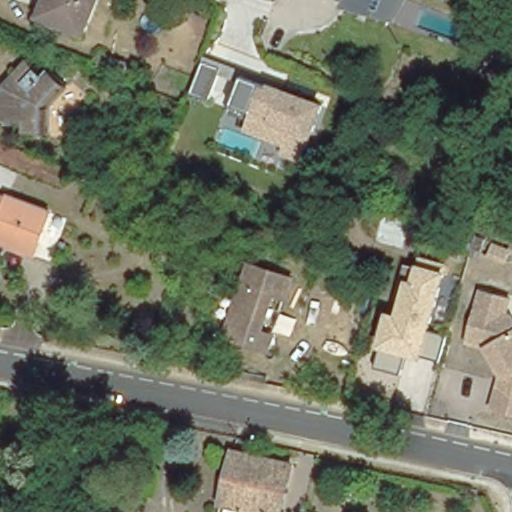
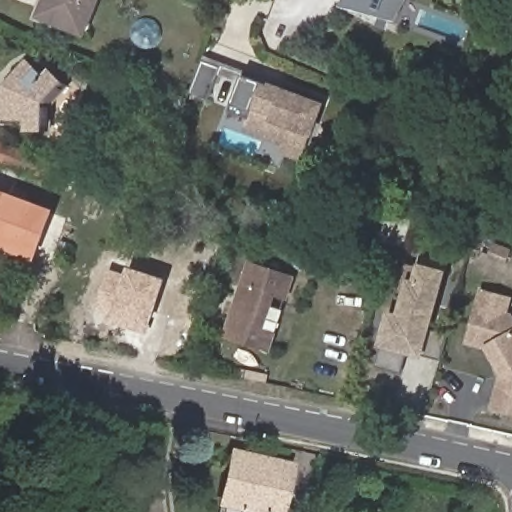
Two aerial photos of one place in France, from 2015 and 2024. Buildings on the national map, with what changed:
unchanged [(83,36),(38,17),(44,0),(97,0),(83,36)]
unchanged [(396,22),(349,10),(352,0),(407,0),(396,22)]
unchanged [(270,89),(272,83),(326,102),(313,137),(302,161),(281,156),(285,145),(244,130),(249,119),(228,112),(232,104),(210,96),(208,101),(190,95),(204,55),(243,70),(244,79),(270,89)]
unchanged [(24,76),(31,70),(49,84),(52,80),(70,95),(52,140),(31,140),(31,132),(7,131),(8,120),(0,119),(0,69),(6,62),(24,76)]
unchanged [(68,170),(62,184),(0,160),(0,144),(68,170)]
unchanged [(5,200),(6,197),(51,215),(43,240),(38,239),(30,259),(0,247),(0,199),(5,200)]
unchanged [(212,263),(198,257),(206,234),(221,239),(212,263)]
unchanged [(432,331),(448,336),(442,359),(426,355),(425,360),(407,355),(402,375),(378,368),(384,349),(378,347),(387,311),(399,313),(402,300),(396,299),(405,267),(417,270),(419,264),(421,256),(447,263),(448,272),(432,331)]
unchanged [(274,345),(264,341),(231,330),(255,259),(297,273),(290,295),(279,291),(269,323),(279,327),(274,345)]
new [(126,275),(128,266),(165,278),(152,326),(149,335),(105,320),(108,312),(96,308),(109,269),(126,275)]
unchanged [(466,344),(471,327),(479,293),(508,300),(504,316),(510,317),(512,322),(512,416),(492,410),(498,387),(501,375),(486,350),(466,344)]
unchanged [(223,499),(234,447),(293,461),(281,512),(244,512),(246,505),(223,499)]

